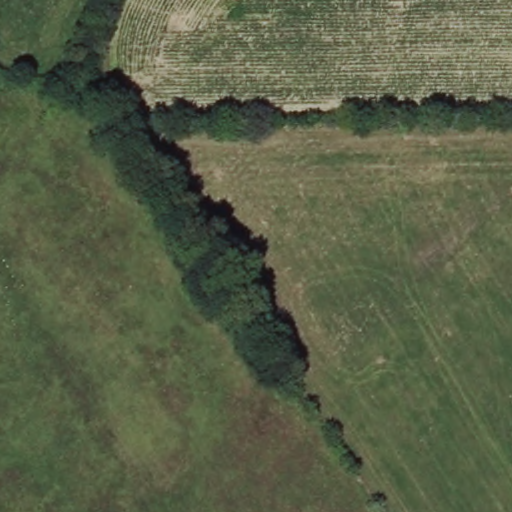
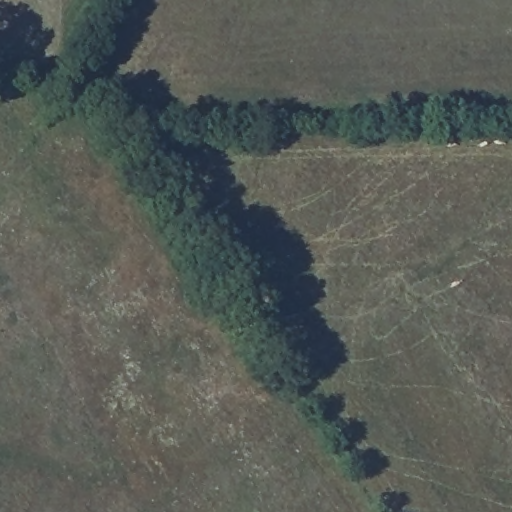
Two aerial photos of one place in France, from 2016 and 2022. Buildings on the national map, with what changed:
[]

